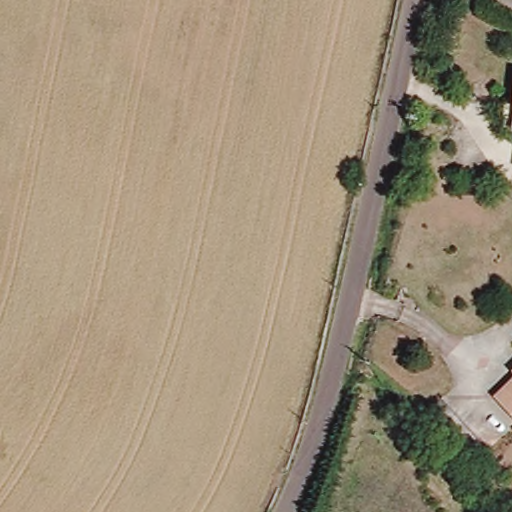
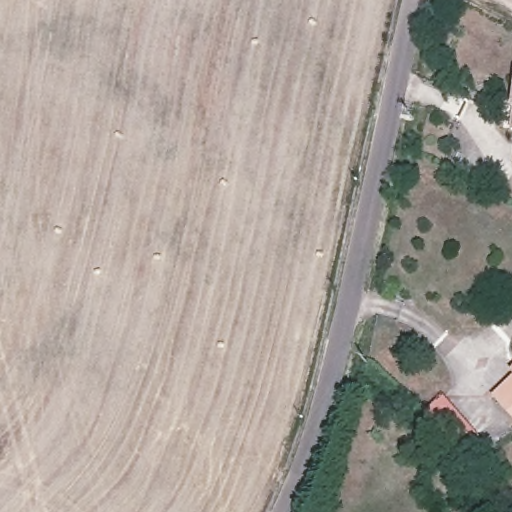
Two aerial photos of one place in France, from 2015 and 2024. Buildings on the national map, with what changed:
unchanged [(512,373),(512,414),(492,393),(512,373)]

